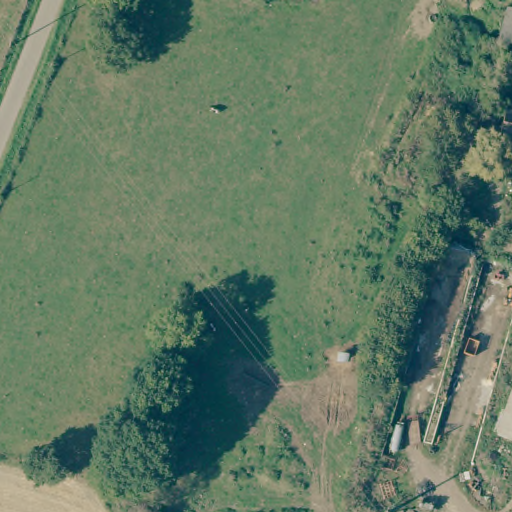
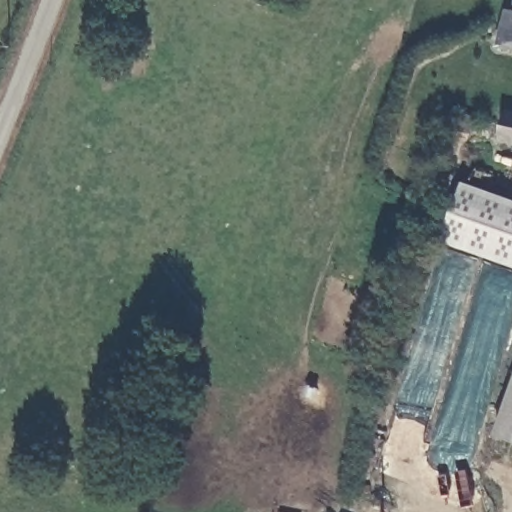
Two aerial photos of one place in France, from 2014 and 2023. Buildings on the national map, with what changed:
unchanged [(508,11),(512,12),(512,49),(502,47),(508,11)]
unchanged [(512,147),(505,146),(512,111),(512,147)]
unchanged [(485,125),(482,139),(478,138),(455,133),(458,119),(480,124),(485,125)]
new [(463,182),(512,200),(512,267),(441,239),(463,182)]
unchanged [(512,419),(512,435),(507,433),(512,419)]

